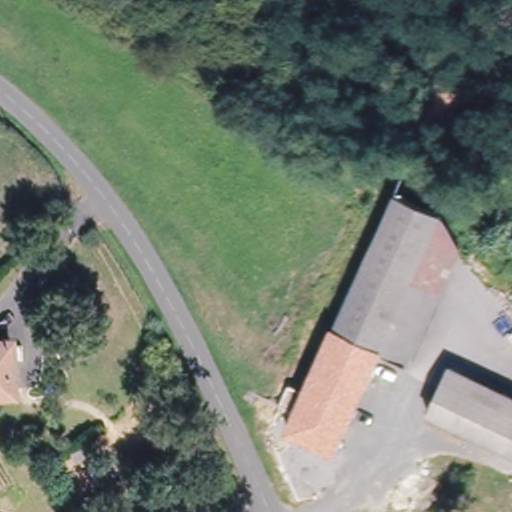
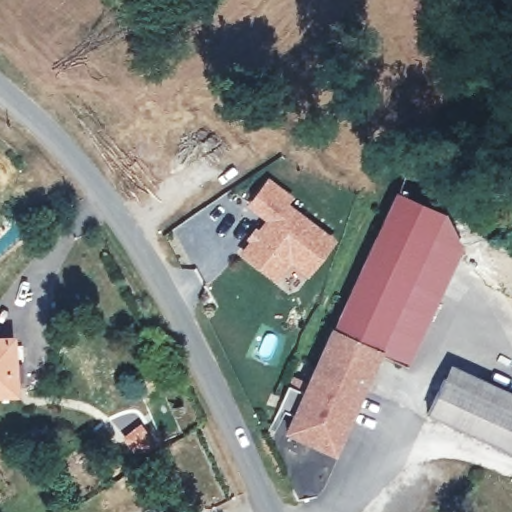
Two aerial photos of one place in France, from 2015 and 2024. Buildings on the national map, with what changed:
new [(293,196),(288,204),(335,239),(306,276),(290,264),(278,282),(239,253),(248,243),(244,239),(254,226),(258,228),(264,219),(246,205),(267,178),(293,196)]
unchanged [(424,333),(428,335),(425,342),(419,340),(409,365),(381,353),(339,453),(290,432),(332,333),(337,335),(402,179),(422,189),(416,200),(442,211),(414,279),(441,290),(424,333)]
unchanged [(5,345),(11,374),(0,377),(0,329),(5,345)]
unchanged [(432,416),(454,367),(512,391),(512,450),(432,416)]

